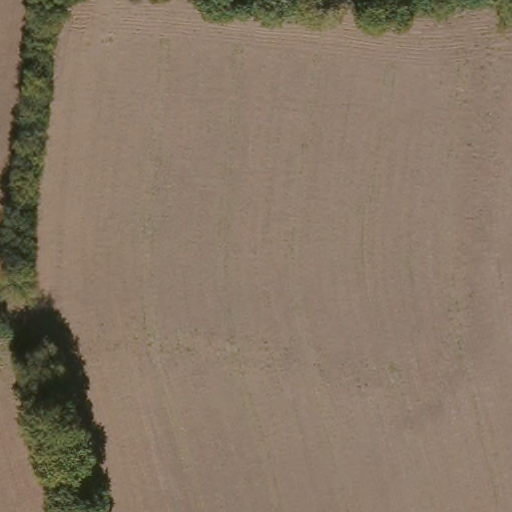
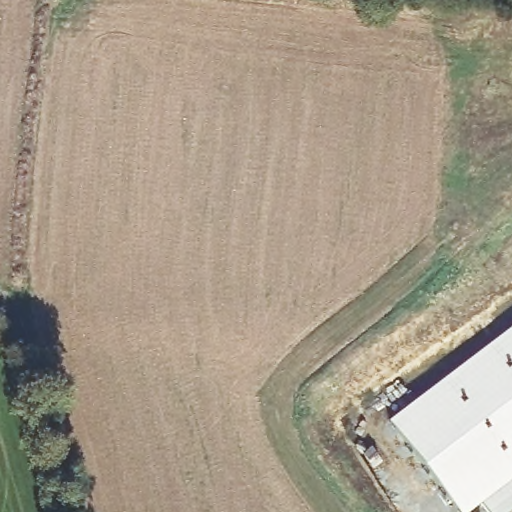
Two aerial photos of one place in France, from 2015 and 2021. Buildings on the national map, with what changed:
new [(512,328),(512,512),(489,512),(484,503),(472,512),(461,512),(391,419),(512,328)]

